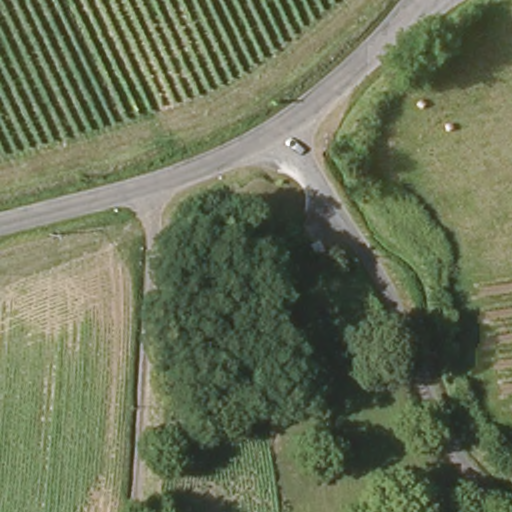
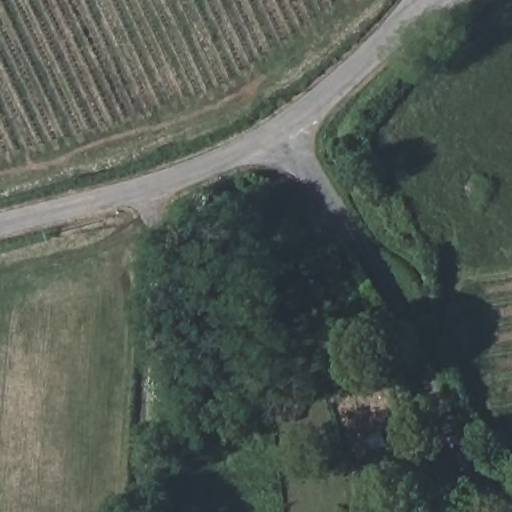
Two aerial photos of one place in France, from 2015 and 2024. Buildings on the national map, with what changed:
[]

